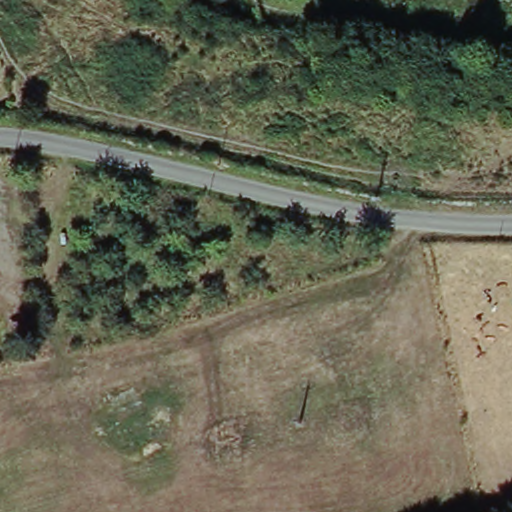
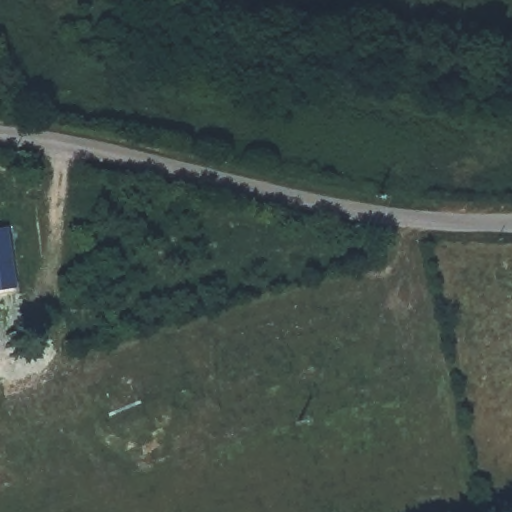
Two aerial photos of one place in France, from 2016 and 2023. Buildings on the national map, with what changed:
new [(7,226),(15,288),(0,290),(0,228),(7,226)]

